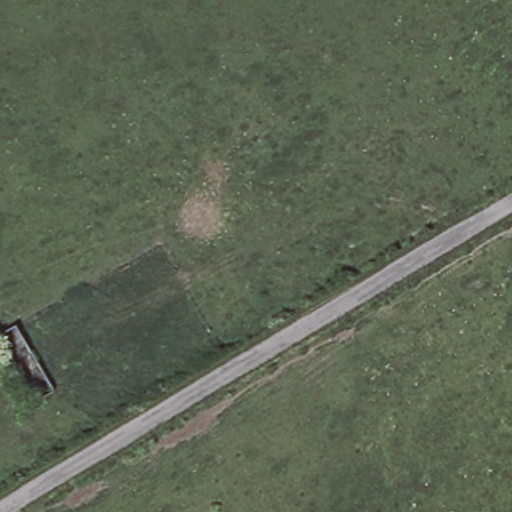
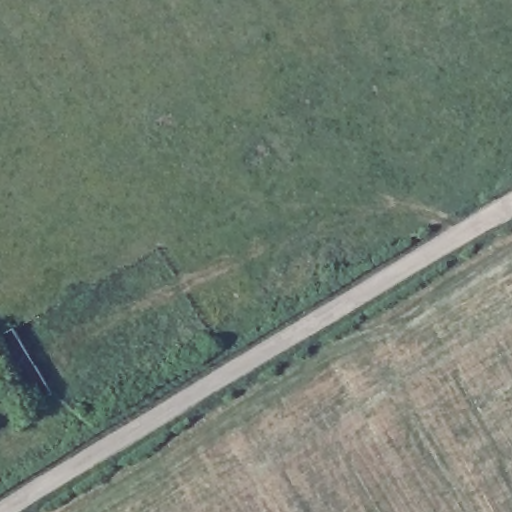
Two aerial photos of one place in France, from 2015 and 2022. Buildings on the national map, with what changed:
unchanged [(23,399),(0,363),(0,331),(15,321),(51,384),(23,399)]

